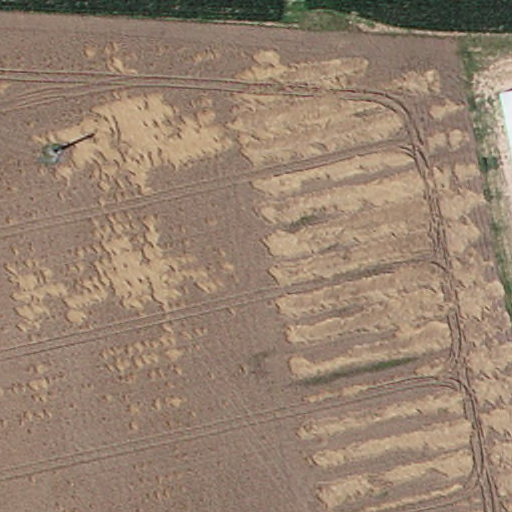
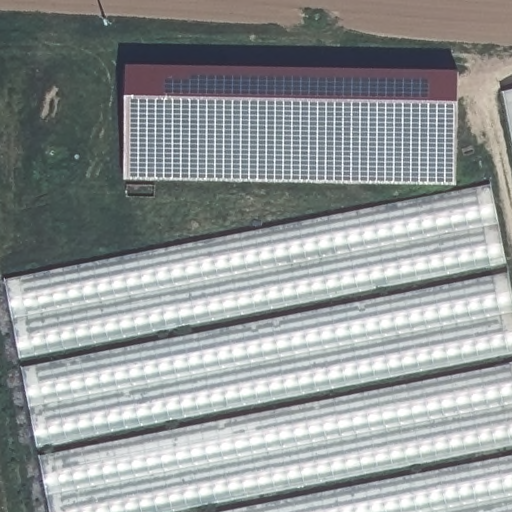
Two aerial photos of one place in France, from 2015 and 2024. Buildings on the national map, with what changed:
demolished [(361,79),(362,83),(429,68),(434,98),(512,80),(512,512),(316,512),(234,77),(356,49),(361,79)]
new [(458,185),(127,181),(128,69),(459,76),(458,185)]
new [(512,90),(512,146),(501,92),(512,90)]
new [(512,352),(512,512),(45,512),(1,284),(480,191),(512,352)]

